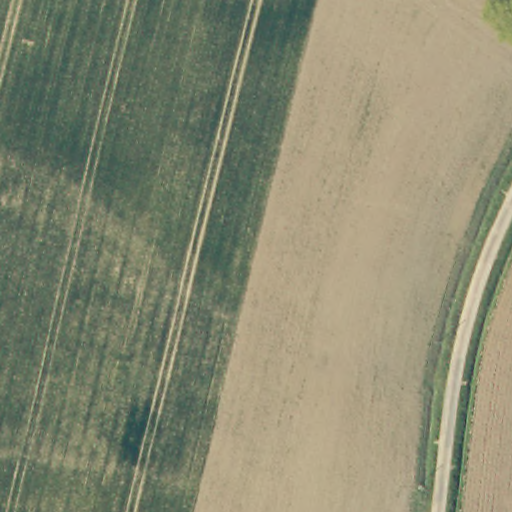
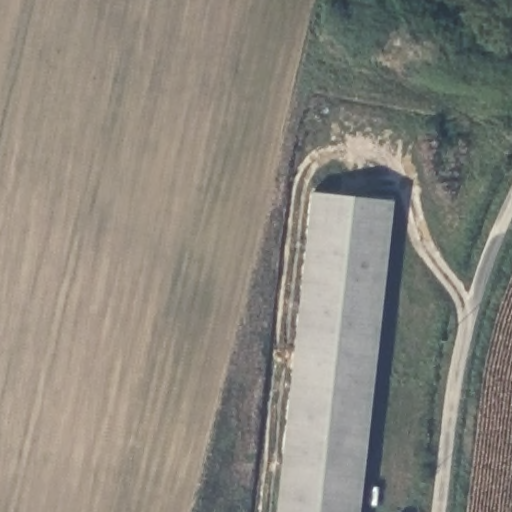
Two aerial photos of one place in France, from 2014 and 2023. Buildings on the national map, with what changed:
new [(359,512),(275,512),(310,193),(393,202),(359,512)]

